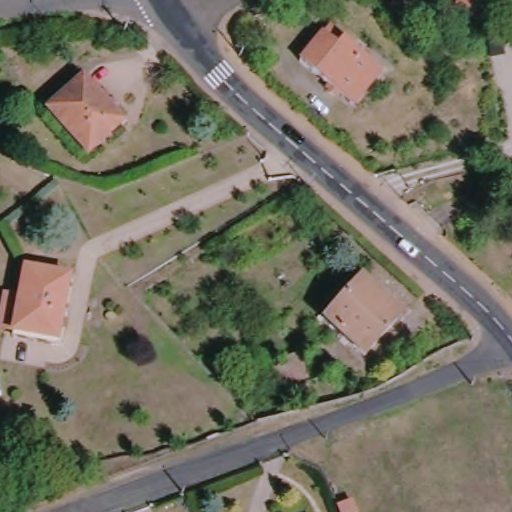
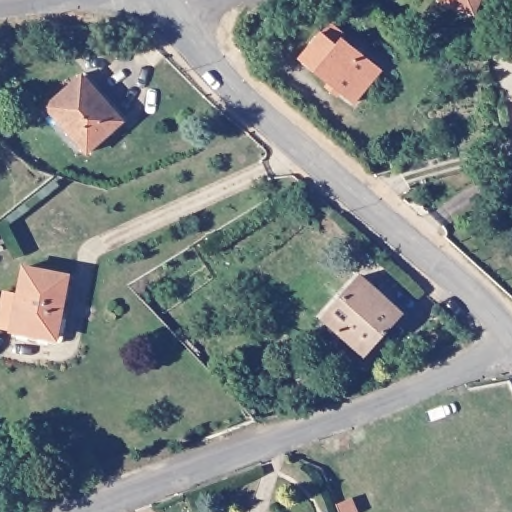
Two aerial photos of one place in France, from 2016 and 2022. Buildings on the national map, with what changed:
unchanged [(470,13),(439,0),(476,0),(470,13)]
unchanged [(350,103),(295,58),(324,24),(378,69),(350,103)]
unchanged [(85,148),(45,103),(77,74),(105,103),(107,101),(120,115),(85,148)]
unchanged [(20,292),(25,264),(69,270),(57,334),(14,326),(0,324),(0,321),(5,290),(20,292)]
unchanged [(395,314),(397,316),(364,353),(322,317),(358,275),(397,309),(395,314)]
unchanged [(301,377),(300,376),(286,382),(278,363),(292,357),(290,353),(302,348),(313,372),(301,377)]
unchanged [(350,512),(334,512),(334,510),(347,505),(350,512)]

